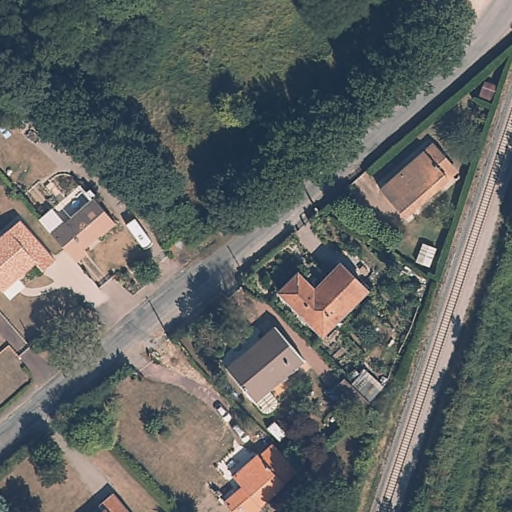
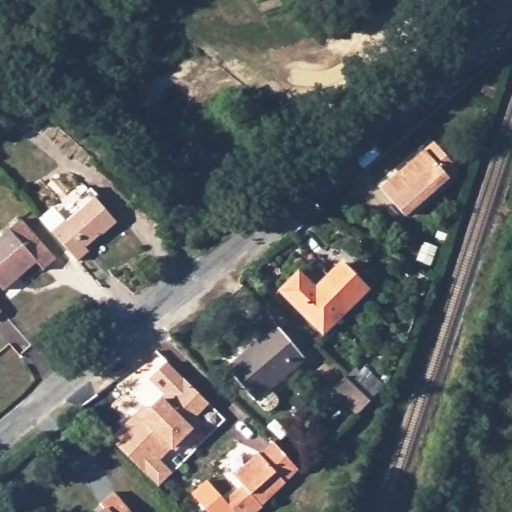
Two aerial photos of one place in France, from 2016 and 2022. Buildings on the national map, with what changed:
unchanged [(380,192),(424,154),(433,146),(456,172),(447,180),(403,219),(380,192)]
unchanged [(55,232),(68,221),(71,223),(98,200),(120,225),(107,236),(104,236),(88,249),(92,252),(81,262),(55,232)]
unchanged [(19,225),(54,265),(41,276),(34,267),(1,296),(0,294),(0,241),(19,225)]
unchanged [(312,290),(336,266),(362,291),(320,333),(276,290),(294,272),(312,290)]
unchanged [(266,410),(255,399),(225,367),(270,323),(300,355),(270,385),(280,395),(266,410)]
new [(142,406),(147,410),(160,397),(162,395),(147,381),(165,362),(209,405),(196,418),(202,425),(176,452),(175,447),(170,452),(169,452),(159,462),(171,473),(158,489),(108,440),(142,406)]
unchanged [(361,408),(340,386),(352,373),(374,396),(361,408)]
unchanged [(266,510),(264,512),(234,512),(227,505),(245,487),(238,480),(260,458),(262,460),(274,447),(300,474),(287,487),(278,478),(275,481),(284,490),(265,508),(266,510)]
unchanged [(133,512),(102,512),(106,508),(100,502),(114,491),(133,512)]

